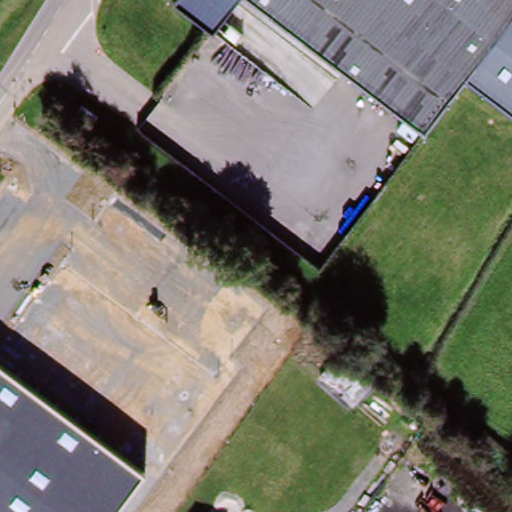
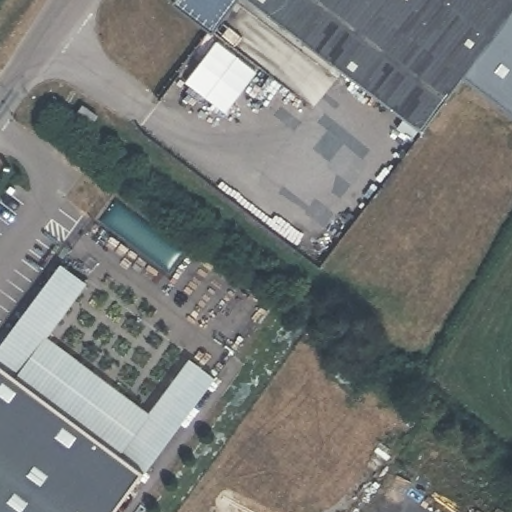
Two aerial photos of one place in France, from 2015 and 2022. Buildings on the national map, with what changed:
unchanged [(217,37),(177,7),(182,0),(244,0),(217,37)]
unchanged [(512,19),(463,84),(427,132),(251,0),(512,0),(512,19)]
unchanged [(512,19),(512,114),(463,84),(512,19)]
unchanged [(85,131),(70,120),(77,111),(92,122),(85,131)]
new [(89,283),(50,337),(149,411),(189,357),(217,377),(145,471),(0,365),(0,343),(60,263),(89,283)]
unchanged [(145,471),(114,512),(0,512),(0,365),(145,471)]

